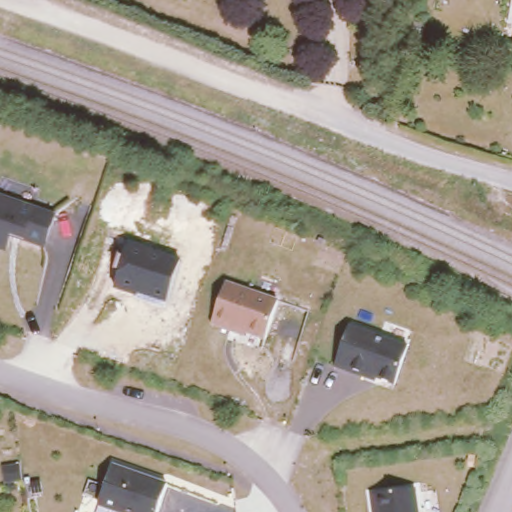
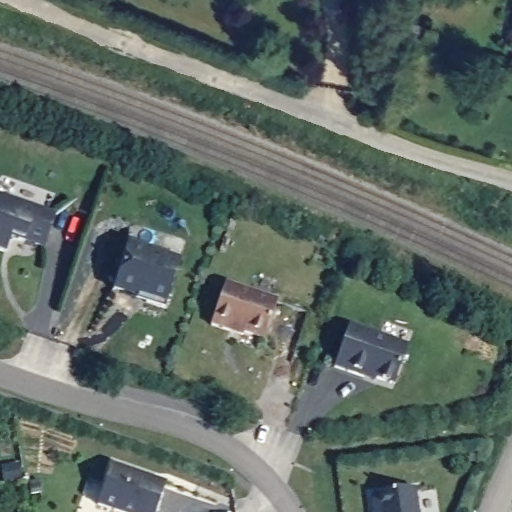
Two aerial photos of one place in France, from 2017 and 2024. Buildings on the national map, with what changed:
unchanged [(45,247),(11,234),(3,253),(0,252),(0,195),(56,212),(45,247)]
unchanged [(167,305),(139,295),(138,297),(114,290),(130,243),(183,261),(167,305)]
unchanged [(275,298),(261,338),(212,323),(225,281),(275,298)]
unchanged [(406,346),(392,387),(333,365),(348,326),(406,346)]
unchanged [(117,512),(98,505),(113,464),(165,482),(155,512),(117,512)]
unchanged [(418,512),(373,512),(370,495),(415,490),(418,512)]

